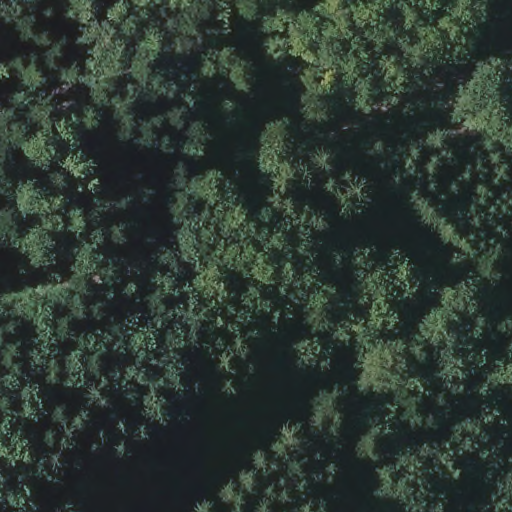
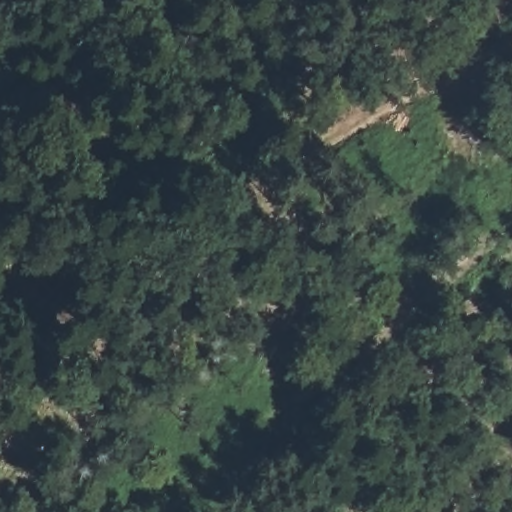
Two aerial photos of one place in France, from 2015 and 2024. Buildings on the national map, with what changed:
unchanged [(0,302),(10,317),(0,322),(0,303),(0,302)]

